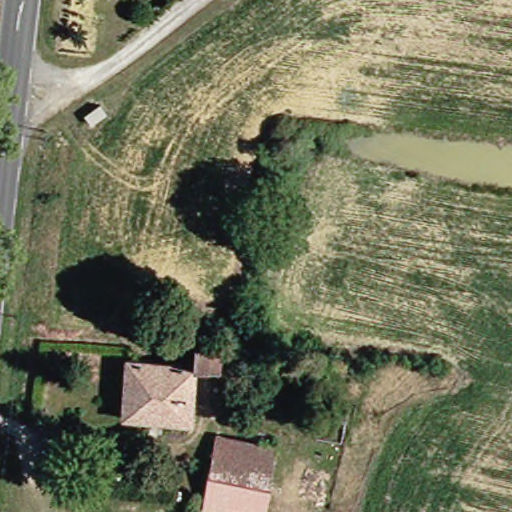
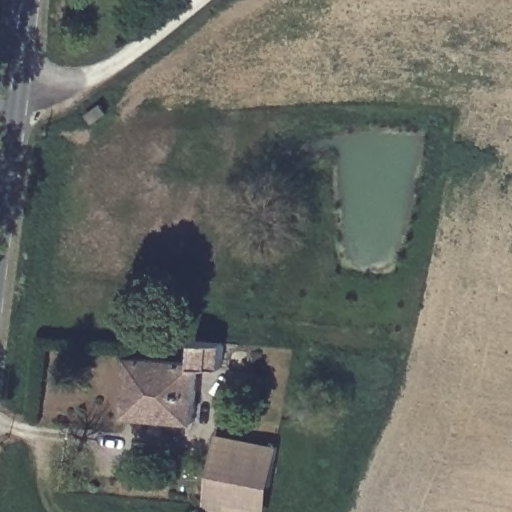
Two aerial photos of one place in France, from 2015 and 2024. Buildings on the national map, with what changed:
unchanged [(188,423),(118,417),(124,358),(190,363),(192,342),(238,344),(247,345),(245,361),(219,359),(218,369),(193,367),(188,423)]
unchanged [(213,440),(273,451),(266,490),(205,479),(213,440)]
unchanged [(261,512),(205,512),(200,511),(205,479),(266,490),(261,512)]

